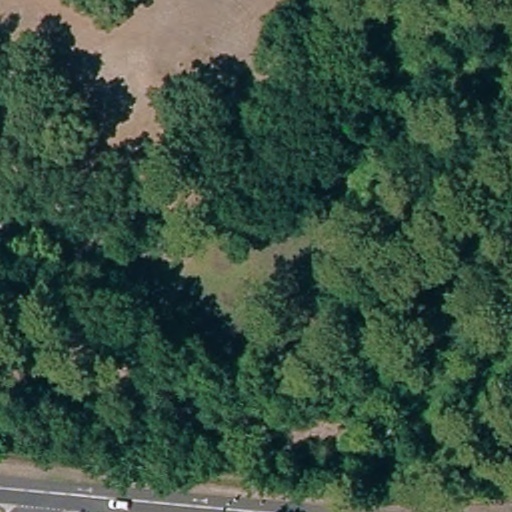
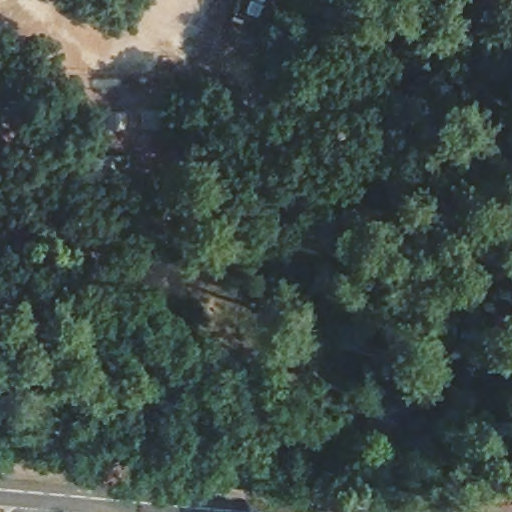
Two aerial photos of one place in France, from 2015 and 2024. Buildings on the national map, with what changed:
[]

